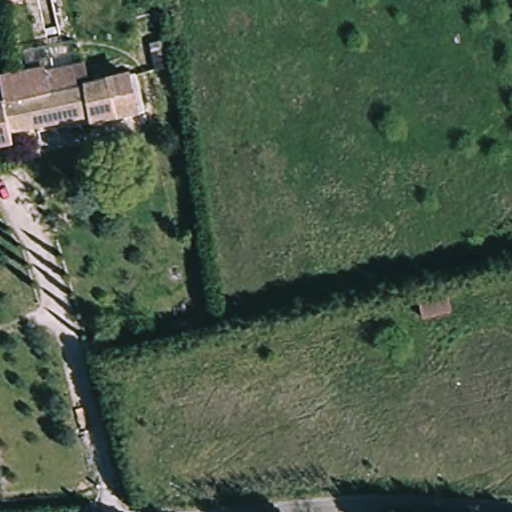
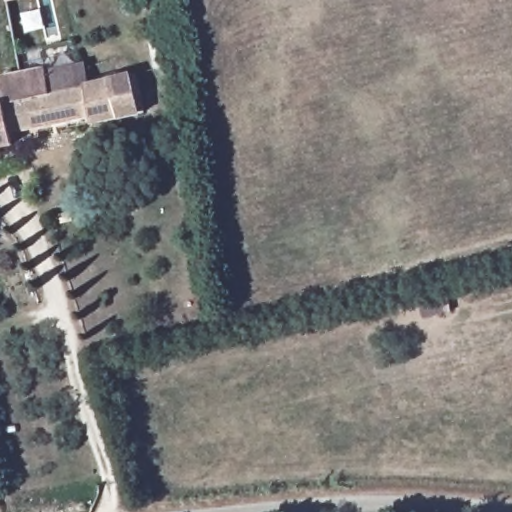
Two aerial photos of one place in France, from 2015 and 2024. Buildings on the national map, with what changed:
unchanged [(85,91),(128,81),(136,122),(89,131),(88,125),(8,141),(0,99),(0,86),(37,78),(35,65),(78,56),(85,91)]
unchanged [(0,99),(8,141),(11,153),(0,155),(0,99)]

